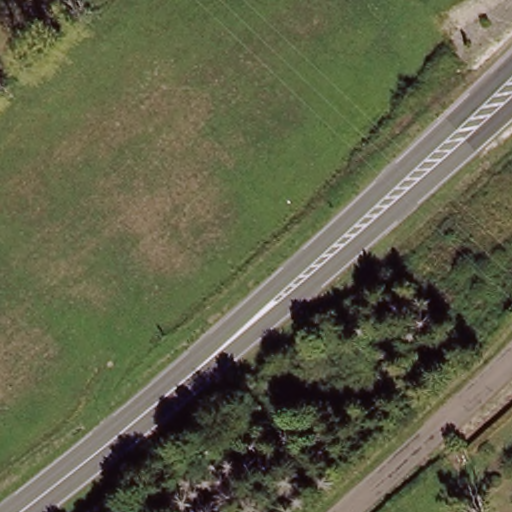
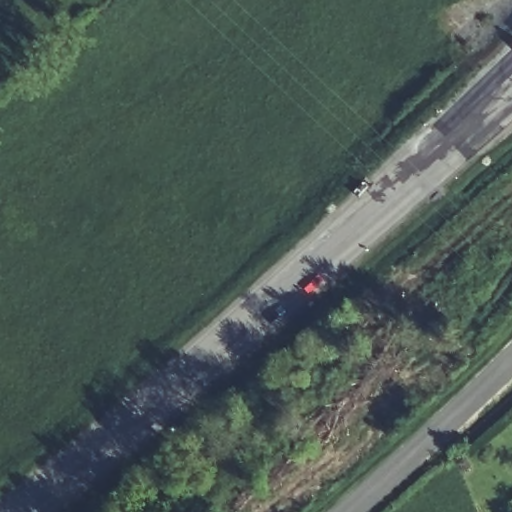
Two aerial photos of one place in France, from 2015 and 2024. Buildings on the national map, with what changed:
[]

